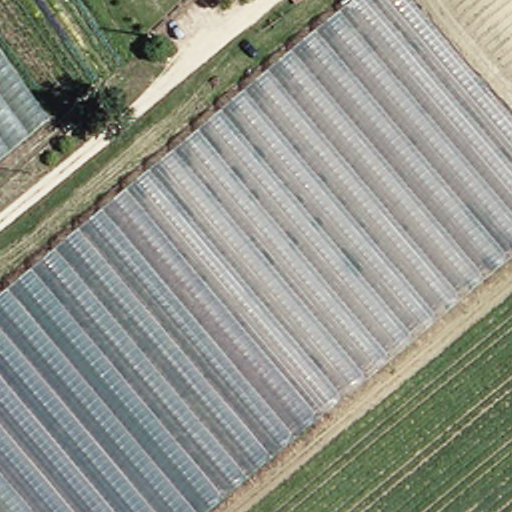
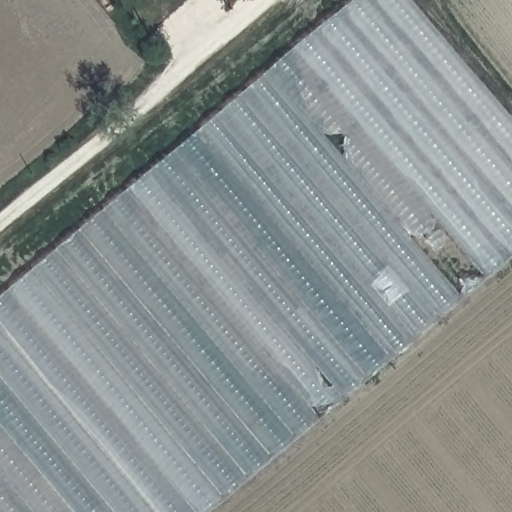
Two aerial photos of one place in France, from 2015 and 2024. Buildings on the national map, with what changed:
unchanged [(512,121),(512,256),(203,512),(0,512),(0,294),(354,0),(408,0),(512,121)]
new [(0,159),(0,48),(50,118),(0,159)]

